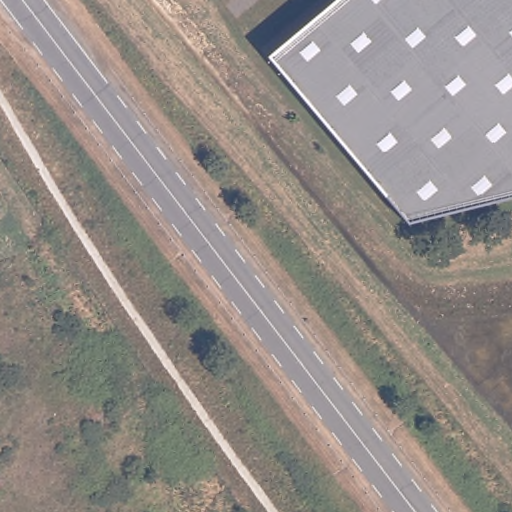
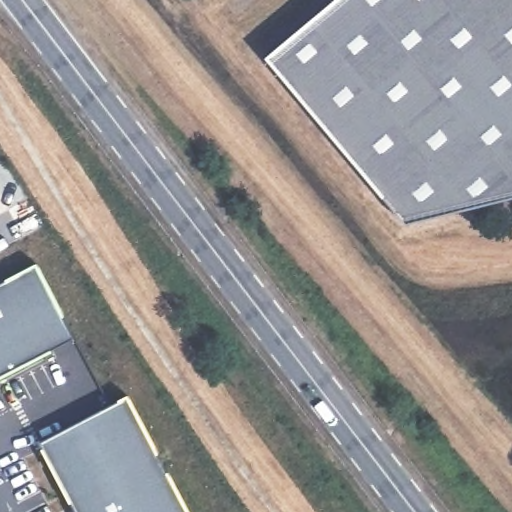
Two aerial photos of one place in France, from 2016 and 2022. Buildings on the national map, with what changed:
unchanged [(407,224),(270,57),(338,0),(512,0),(512,198),(407,224)]
new [(0,284),(38,265),(74,338),(0,378),(0,284)]
new [(128,397),(189,512),(76,512),(39,443),(128,397)]

